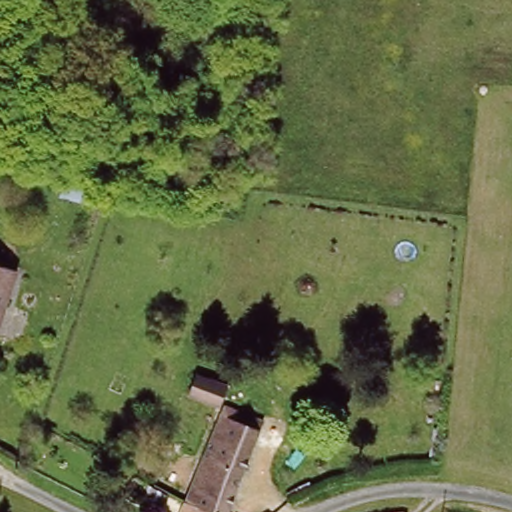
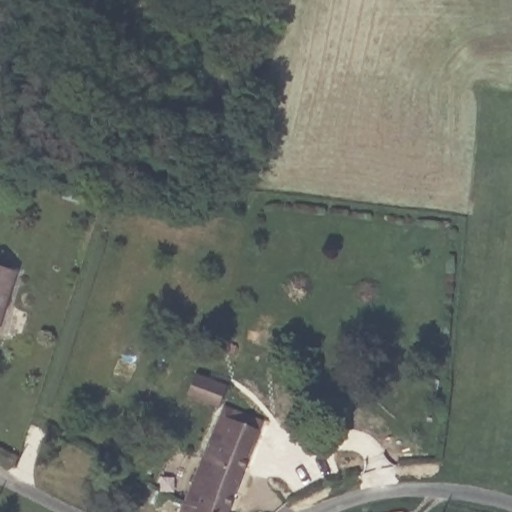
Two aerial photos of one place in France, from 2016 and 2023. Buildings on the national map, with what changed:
unchanged [(0,318),(0,268),(15,273),(0,318)]
unchanged [(197,374),(226,388),(219,404),(189,390),(197,374)]
unchanged [(266,422),(228,512),(215,512),(186,498),(225,405),(266,422)]
unchanged [(215,512),(180,512),(186,498),(215,512)]

